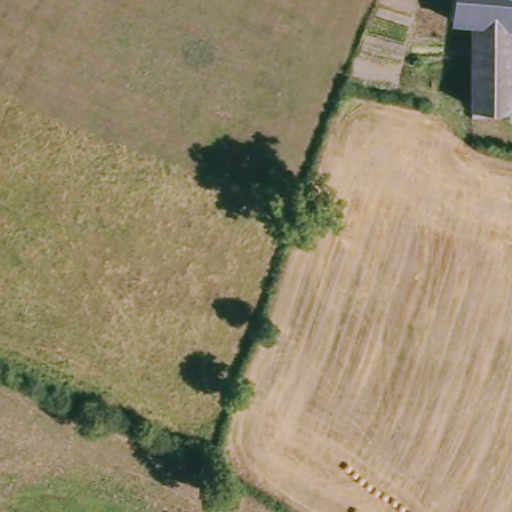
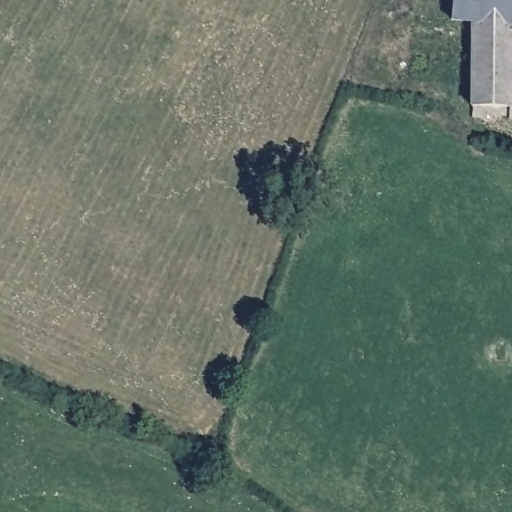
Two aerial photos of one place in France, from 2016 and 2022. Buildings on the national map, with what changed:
unchanged [(474,105),(475,35),(452,31),(455,0),(512,0),(512,106),(474,105)]

